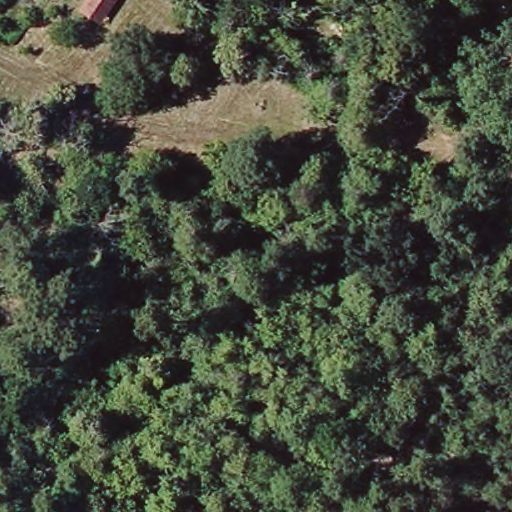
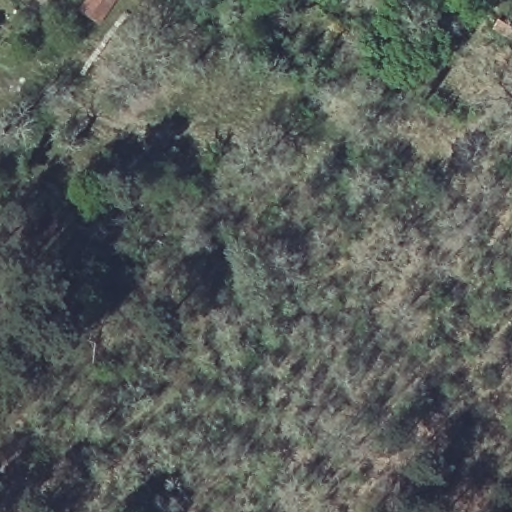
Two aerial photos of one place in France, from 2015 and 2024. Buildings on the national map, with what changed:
unchanged [(88,8),(93,0),(115,0),(102,21),(88,8)]

